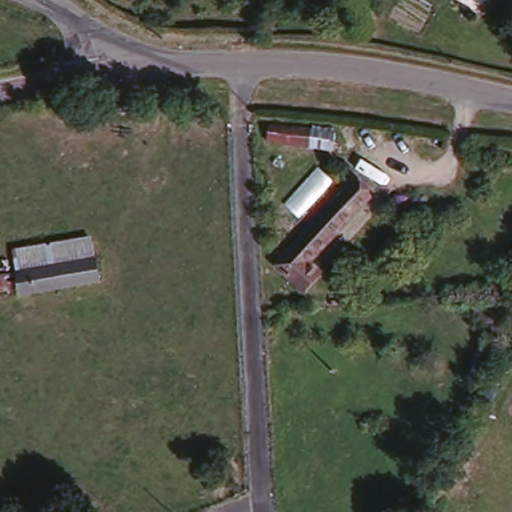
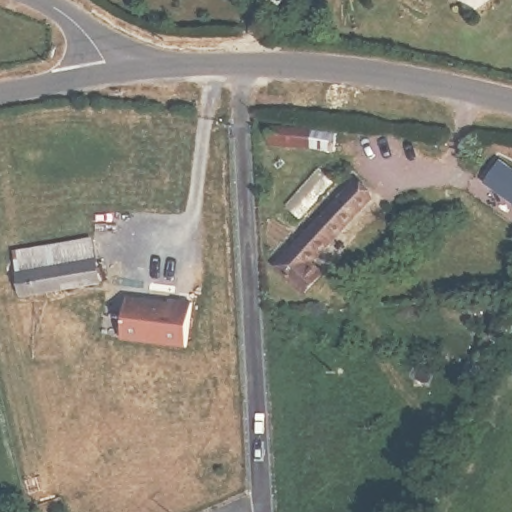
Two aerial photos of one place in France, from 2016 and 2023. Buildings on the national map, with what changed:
unchanged [(324,155),(308,153),(305,156),(267,150),(270,134),(310,138),(327,141),(324,155)]
unchanged [(351,180),(370,195),(316,274),(328,285),(310,310),(275,284),(351,180)]
unchanged [(94,239),(103,290),(21,300),(12,254),(94,239)]
new [(131,297),(177,300),(177,298),(194,299),(188,344),(122,335),(131,297)]

